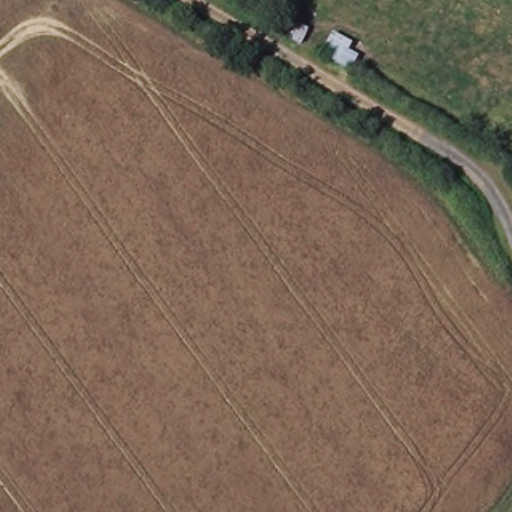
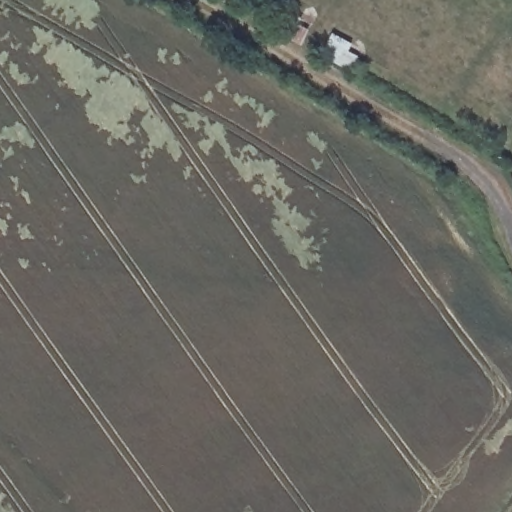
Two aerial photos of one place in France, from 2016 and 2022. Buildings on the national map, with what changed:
unchanged [(275,32),(287,9),(303,18),(300,25),(310,30),(301,45),(278,34),(275,33),(275,32)]
unchanged [(333,34),(352,45),(350,52),(358,57),(350,72),(321,56),(333,34)]

